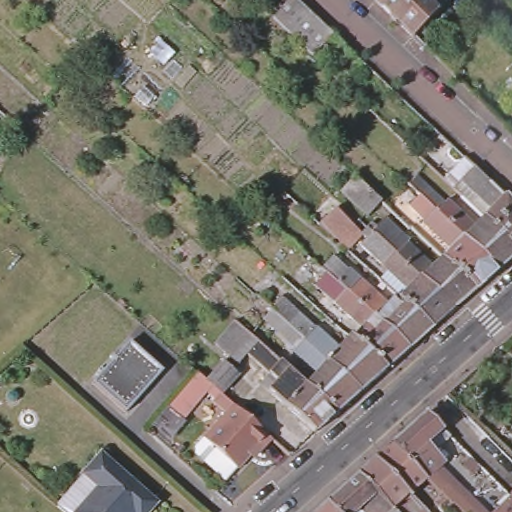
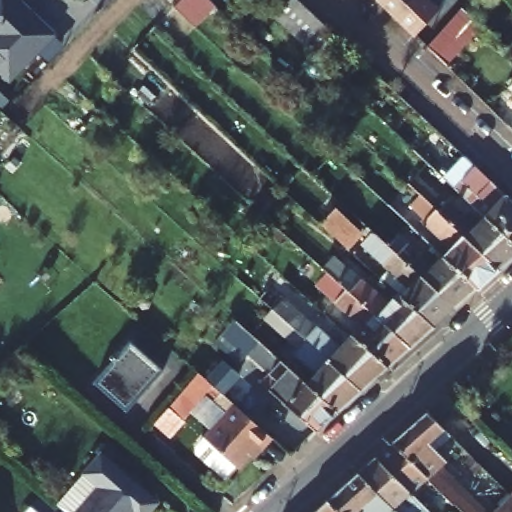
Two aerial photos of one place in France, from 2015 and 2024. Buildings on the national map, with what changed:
new [(58,33),(53,37),(64,47),(49,63),(39,54),(12,81),(0,70),(0,0),(22,0),(58,33)]
unchanged [(334,32),(311,55),(272,17),(289,0),(300,0),(334,32)]
unchanged [(373,0),(408,0),(391,18),(373,0)]
unchanged [(427,3),(435,11),(410,37),(391,18),(408,0),(429,0),(427,3)]
unchanged [(512,84),(512,103),(503,93),(512,84)]
unchanged [(469,166),(512,208),(512,248),(479,217),(446,186),(469,166)]
unchanged [(512,252),(492,270),(402,185),(412,174),(439,200),(441,198),(471,225),(479,217),(512,248),(512,252)]
demolished [(371,202),(359,212),(336,192),(353,177),(371,202)]
unchanged [(402,185),(492,270),(469,289),(436,258),(444,250),(416,223),(418,222),(391,196),(402,185)]
unchanged [(326,207),(346,225),(349,237),(338,248),(336,247),(311,223),(326,207)]
unchanged [(436,258),(469,289),(448,309),(359,228),(354,223),(359,218),(368,226),(377,216),(402,239),(399,242),(426,266),(434,257),(436,258)]
unchanged [(448,309),(426,328),(394,299),(402,290),(354,245),(359,238),(354,234),(359,228),(448,309)]
unchanged [(394,299),(426,328),(404,348),(325,277),(317,269),(327,257),(381,306),(391,296),(394,299)]
unchanged [(325,277),(404,348),(381,368),(349,340),(357,330),(314,290),(325,277)]
unchanged [(266,311),(278,299),(333,347),(344,335),(349,340),(381,368),(354,392),(266,311)]
unchanged [(354,392),(331,412),(299,383),(308,374),(254,323),(266,311),(354,392)]
unchanged [(231,320),(299,383),(331,412),(309,432),(254,384),(264,374),(242,355),(234,363),(211,342),(231,320)]
unchanged [(94,380),(130,340),(163,369),(126,410),(94,380)]
unchanged [(165,407),(195,373),(201,379),(218,360),(233,373),(216,392),(207,384),(177,417),(165,407)]
unchanged [(256,445),(253,442),(234,463),(201,433),(231,400),(268,433),(256,445)]
unchanged [(429,500),(421,493),(430,483),(424,477),(389,441),(422,413),(446,436),(432,449),(444,461),(438,467),(482,512),(463,512),(455,505),(449,503),(440,512),(434,512),(426,504),(429,500)]
unchanged [(371,458),(389,441),(424,477),(406,493),(371,458)]
unchanged [(84,473),(101,453),(157,502),(148,512),(69,512),(58,503),(84,473)]
unchanged [(388,509),(353,474),(371,458),(406,493),(388,509)]
unchanged [(352,512),(333,512),(323,502),(353,474),(388,509),(391,512),(357,512),(355,510),(352,512)]
unchanged [(512,502),(507,497),(512,491),(512,502)]
unchanged [(512,502),(512,512),(492,512),(507,497),(512,502)]
unchanged [(333,512),(311,512),(323,502),(333,512)]

